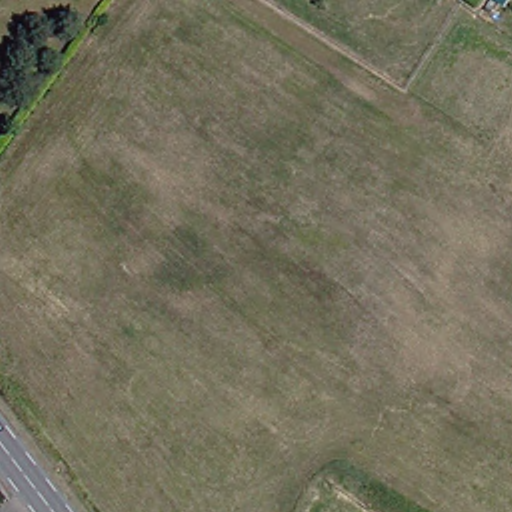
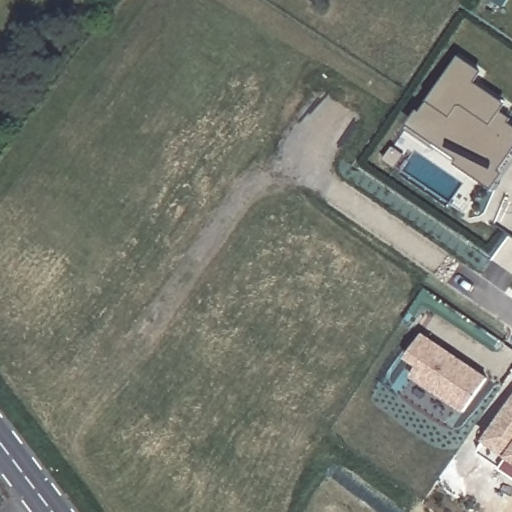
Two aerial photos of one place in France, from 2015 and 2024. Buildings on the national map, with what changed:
new [(458,59),(477,72),(470,83),(501,105),(493,116),(512,129),(512,147),(488,182),(460,162),(470,148),(440,127),(433,137),(412,124),(458,59)]
new [(450,355),(460,362),(486,381),(463,413),(411,377),(418,367),(406,358),(421,336),(450,355)]
new [(512,396),(512,456),(484,437),(512,396)]
new [(484,437),(512,456),(512,474),(475,450),(484,437)]

